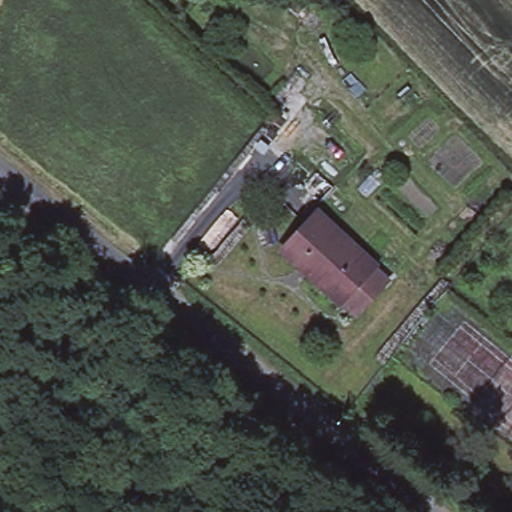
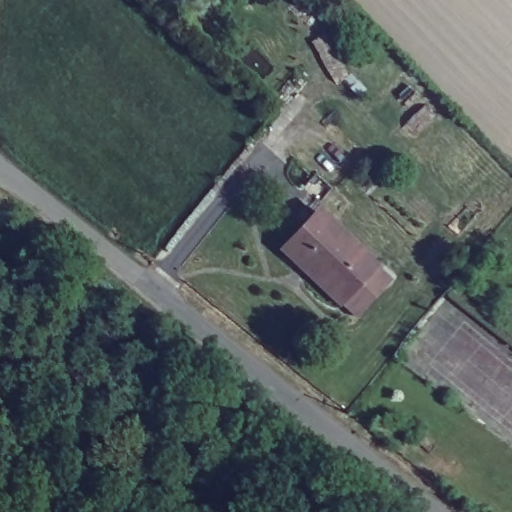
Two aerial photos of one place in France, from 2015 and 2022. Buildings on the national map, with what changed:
unchanged [(324,221),(382,274),(348,311),(290,260),(324,221)]

